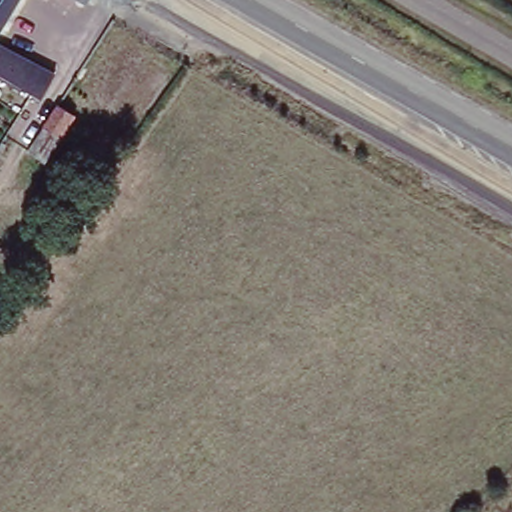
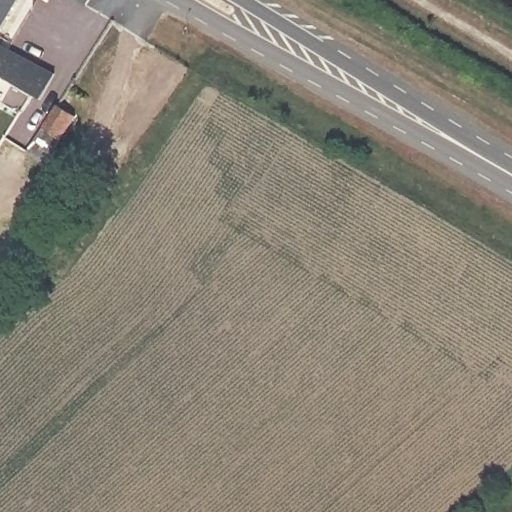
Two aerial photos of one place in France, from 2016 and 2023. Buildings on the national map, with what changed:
unchanged [(41,120),(54,98),(59,101),(74,110),(61,133),(47,156),(26,145),(41,120)]

